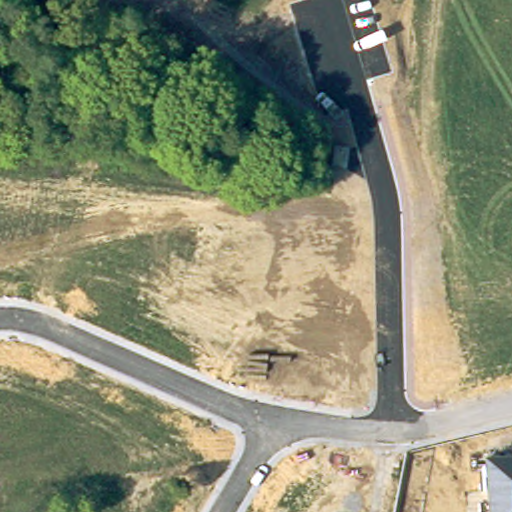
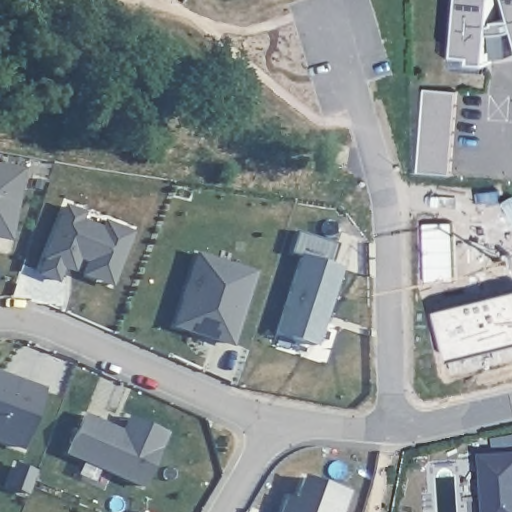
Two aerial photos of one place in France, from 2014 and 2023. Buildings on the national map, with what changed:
new [(462,0),(495,0),(494,23),(501,23),(500,19),(512,18),(512,54),(499,54),(498,31),(492,31),(491,61),(490,70),(457,68),(458,54),(462,0)]
new [(511,0),(512,0),(512,3),(511,0)]
new [(449,174),(417,172),(425,89),(457,91),(449,174)]
new [(0,165),(24,169),(11,240),(0,238),(0,165)]
new [(78,261),(74,273),(64,268),(57,283),(37,275),(43,260),(41,259),(63,203),(85,212),(82,219),(100,226),(102,222),(133,233),(112,288),(82,275),(86,264),(78,261)]
new [(316,346),(277,334),(302,257),(290,254),(297,233),(338,245),(332,266),(341,269),(326,316),(324,323),(316,346)]
new [(256,271),(232,347),(171,327),(194,252),(256,271)]
new [(22,450),(0,441),(0,374),(44,390),(22,450)]
new [(167,433),(143,490),(65,456),(84,414),(120,430),(126,415),(167,433)]
unchanged [(512,456),(512,512),(490,512),(486,459),(512,456)]
new [(292,500),(301,477),(342,492),(335,512),(278,512),(284,497),(292,500)]

